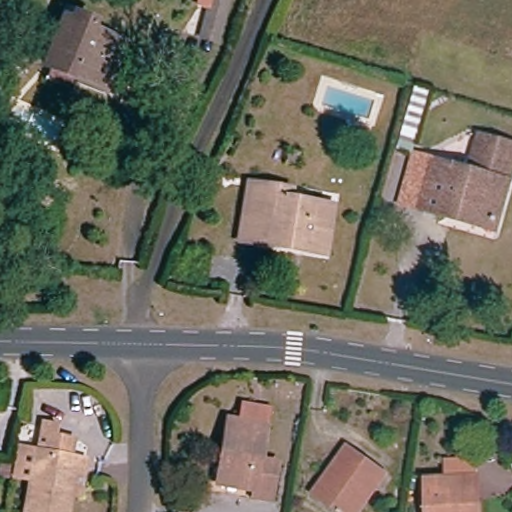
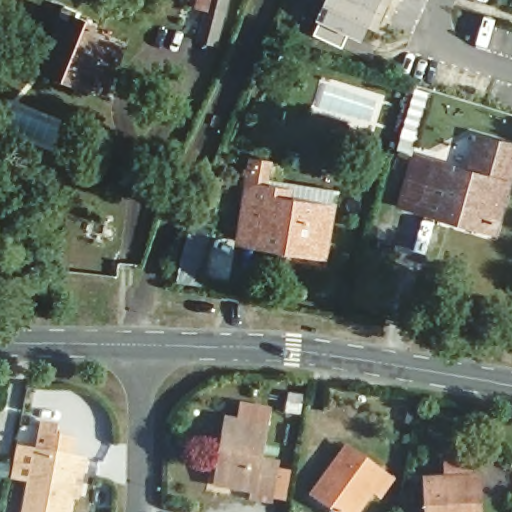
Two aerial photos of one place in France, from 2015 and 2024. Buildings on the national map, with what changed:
unchanged [(210,24),(212,15),(204,13),(206,0),(232,0),(226,28),(221,49),(205,46),(210,24)]
new [(319,18),(327,0),(381,0),(362,39),(348,33),(343,47),(315,34),(319,18)]
unchanged [(45,86),(50,76),(42,73),(61,23),(58,21),(62,11),(74,16),(72,20),(96,29),(93,37),(124,49),(105,99),(73,86),(69,96),(45,86)]
unchanged [(421,212),(436,165),(472,176),(477,158),(482,143),(496,148),(512,152),(512,167),(494,226),(492,233),(441,218),(421,212)]
unchanged [(299,258),(239,247),(248,190),(290,197),(288,206),(332,214),(325,254),(324,262),(299,258)]
unchanged [(220,457),(226,423),(265,429),(259,465),(275,468),(268,506),(250,503),(251,496),(222,491),(214,490),(220,457)]
unchanged [(361,512),(331,512),(312,498),(347,452),(378,476),(384,481),(367,504),(361,512)]
unchanged [(75,478),(69,512),(24,512),(33,457),(83,465),(81,479),(75,478)]
unchanged [(446,488),(445,470),(475,468),(477,486),(477,506),(477,512),(425,512),(425,489),(446,488)]

